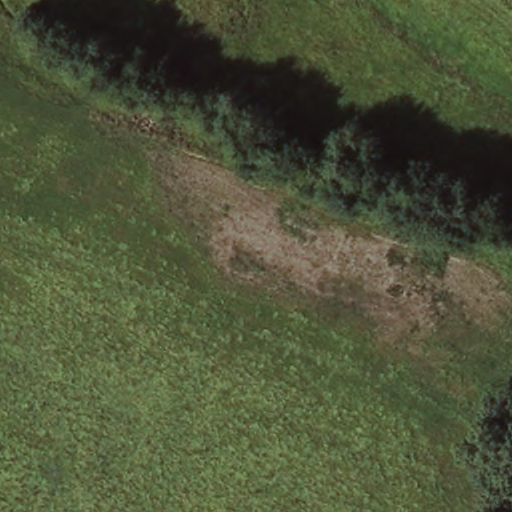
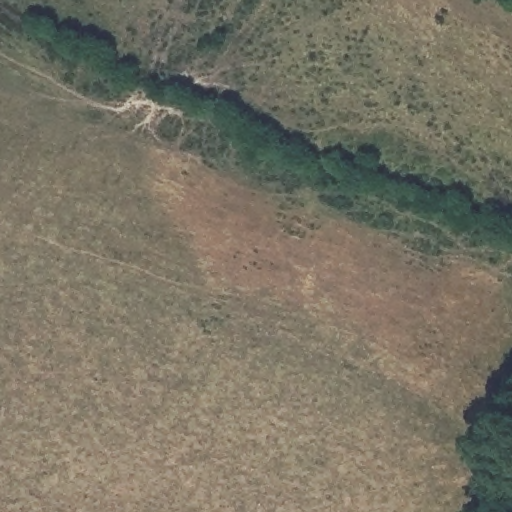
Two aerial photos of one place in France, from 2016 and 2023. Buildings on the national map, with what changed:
[]

